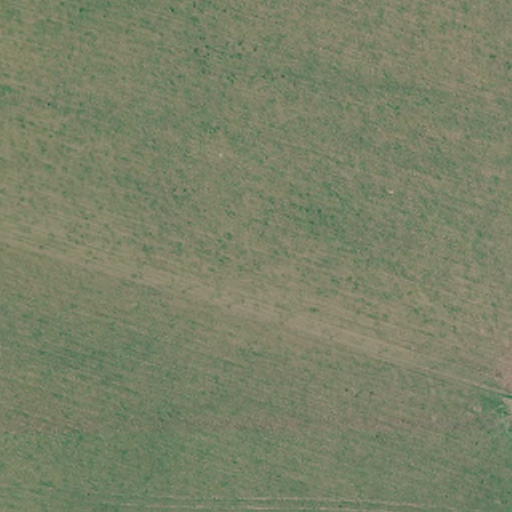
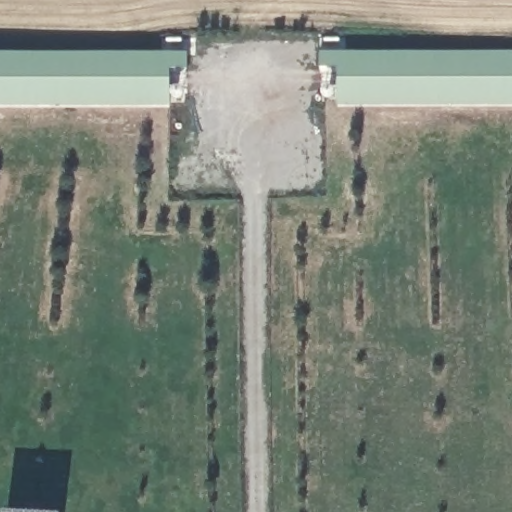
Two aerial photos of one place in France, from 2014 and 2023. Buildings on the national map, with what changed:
new [(321,52),(512,52),(512,106),(338,106),(338,68),(321,68),(321,52)]
new [(171,68),(170,106),(0,106),(0,53),(188,53),(187,68),(171,68)]

